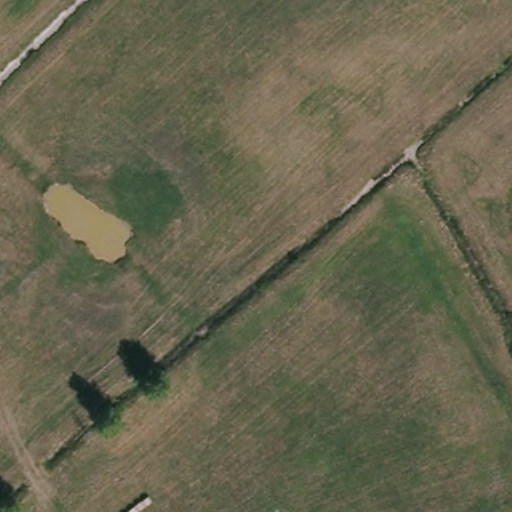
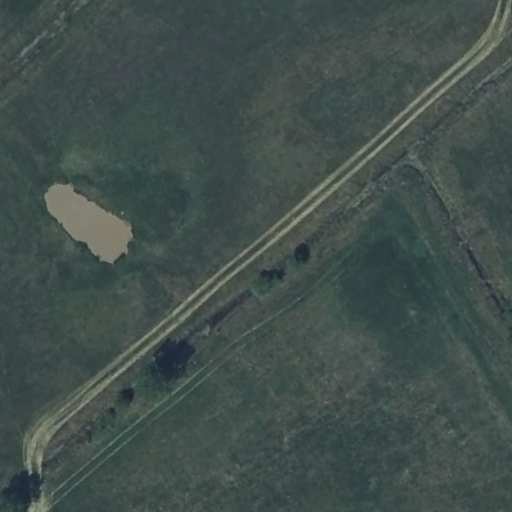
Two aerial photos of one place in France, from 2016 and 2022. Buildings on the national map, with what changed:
[]

